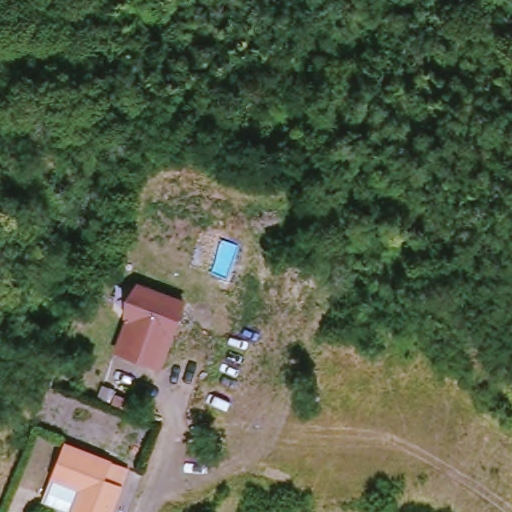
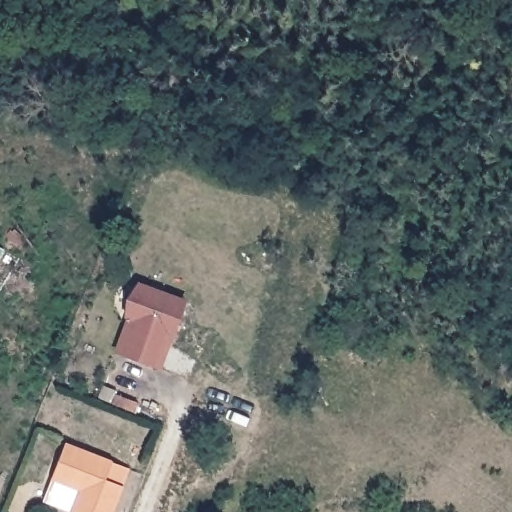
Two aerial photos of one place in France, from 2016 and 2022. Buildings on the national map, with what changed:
unchanged [(129,359),(138,327),(129,323),(129,306),(131,302),(139,291),(181,306),(160,370),(129,359)]
unchanged [(83,488),(56,482),(69,443),(115,460),(134,470),(129,487),(120,512),(76,512),(83,488)]

